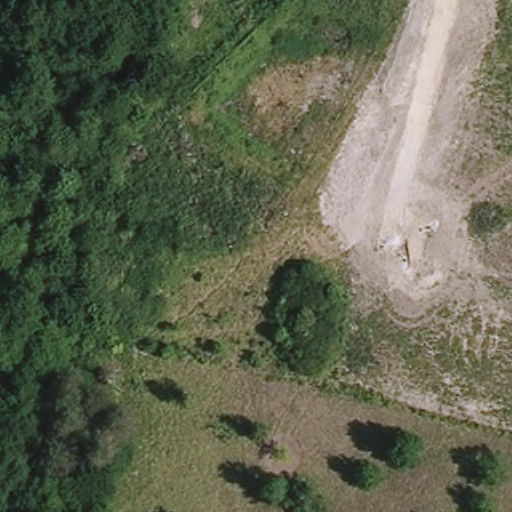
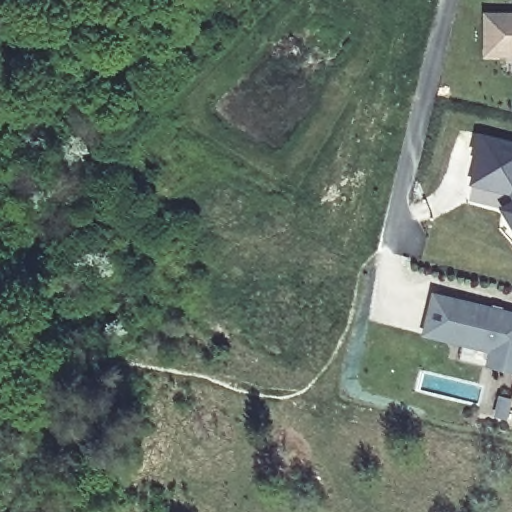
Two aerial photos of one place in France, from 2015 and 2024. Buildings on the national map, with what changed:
new [(512,13),(512,59),(484,59),(483,13),(512,13)]
new [(477,154),(471,153),(476,133),(512,142),(512,196),(509,190),(470,181),(477,154)]
new [(500,207),(512,200),(512,227),(500,207)]
new [(512,312),(512,374),(485,368),(488,353),(422,336),(432,293),(512,312)]

